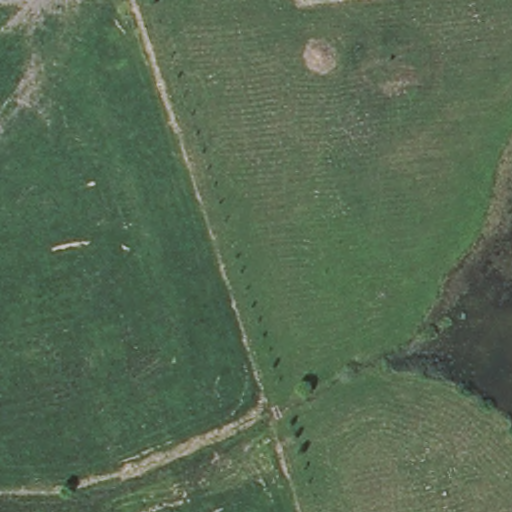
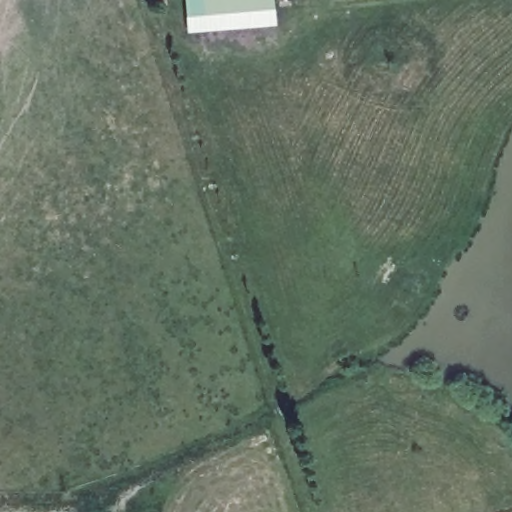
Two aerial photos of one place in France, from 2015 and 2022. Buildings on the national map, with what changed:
new [(277,24),(187,32),(185,0),(274,0),(277,24)]

